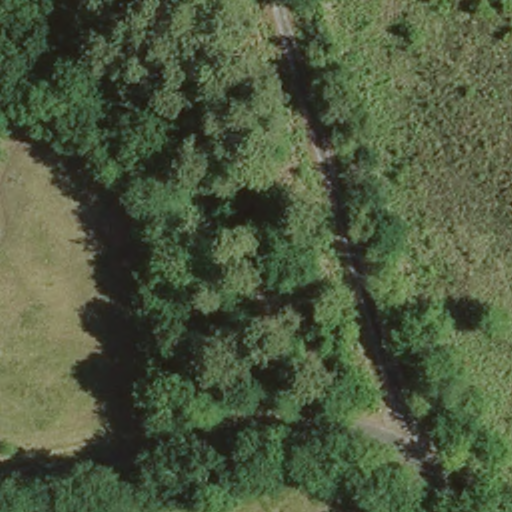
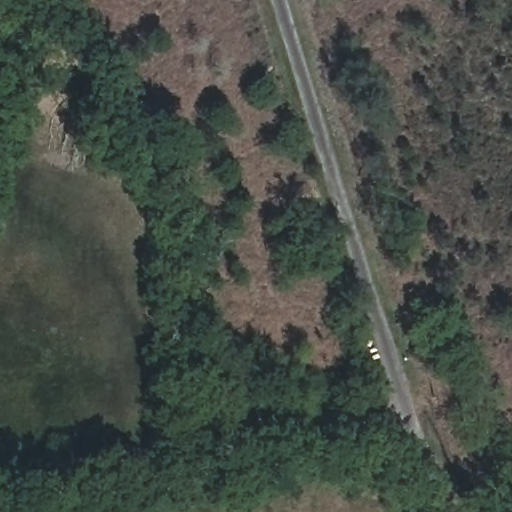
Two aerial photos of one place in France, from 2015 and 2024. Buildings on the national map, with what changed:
[]

